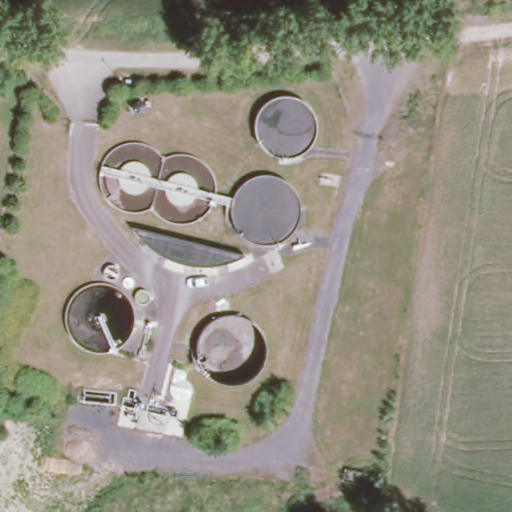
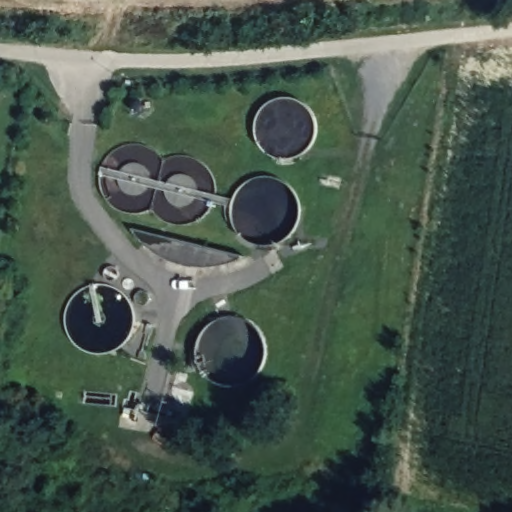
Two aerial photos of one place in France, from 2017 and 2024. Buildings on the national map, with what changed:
unchanged [(245,260),(224,270),(207,271),(187,270),(168,263),(150,252),(140,244),(132,232),(245,260)]

